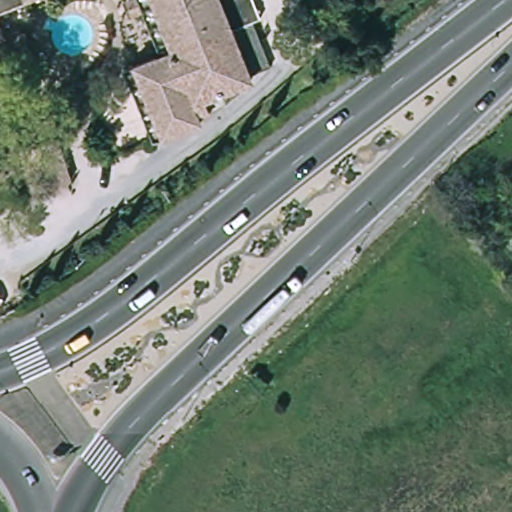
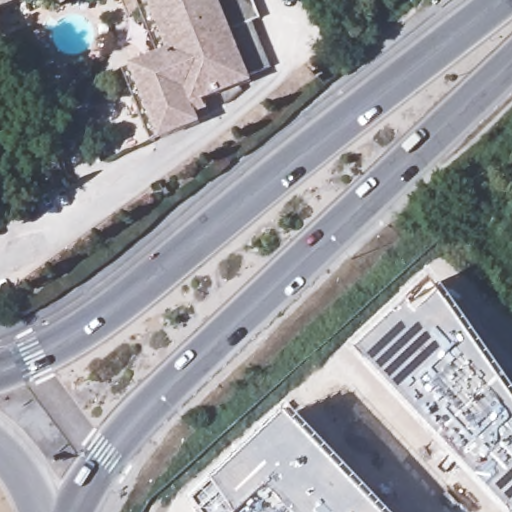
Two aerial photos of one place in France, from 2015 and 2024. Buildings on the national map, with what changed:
new [(0,7),(0,0),(17,0),(0,7)]
unchanged [(233,29),(256,20),(274,66),(251,74),(254,82),(243,87),(246,92),(230,104),(226,93),(208,101),(213,115),(201,120),(203,123),(156,141),(129,70),(163,57),(145,12),(134,16),(128,0),(129,0),(222,0),(233,29)]
new [(0,38),(0,27),(4,36),(0,38)]
demolished [(6,94),(0,77),(0,43),(14,38),(29,85),(6,94)]
new [(436,274),(512,383),(512,512),(506,512),(354,354),(436,274)]
new [(295,412),(391,512),(202,512),(196,503),(295,412)]

